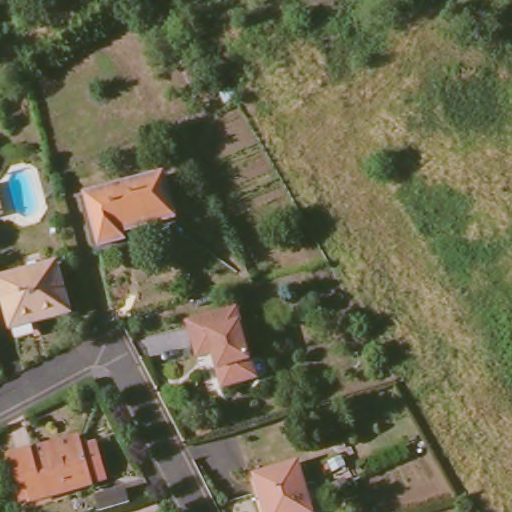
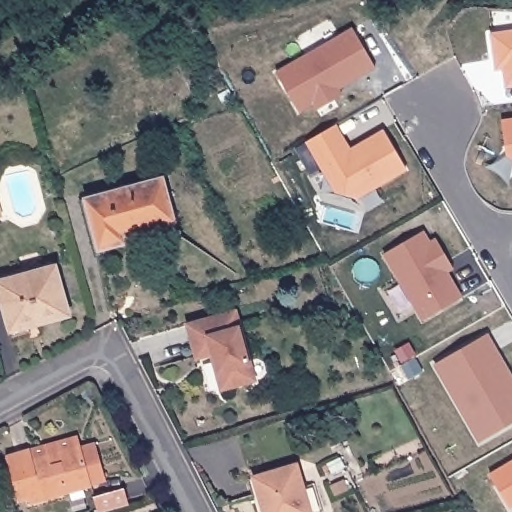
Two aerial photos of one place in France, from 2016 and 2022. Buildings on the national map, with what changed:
new [(314,107),(310,101),(295,109),(273,69),(351,26),(373,65),(335,87),(339,93),(332,97),(314,107)]
new [(503,71),(495,72),(490,34),(512,30),(512,87),(505,88),(503,71)]
new [(500,118),(512,116),(512,158),(504,152),(500,118)]
new [(304,139),(332,123),(349,152),(355,147),(354,145),(382,129),(403,166),(353,196),(334,191),(304,139)]
unchanged [(158,176),(170,217),(127,231),(128,239),(100,247),(87,197),(158,176)]
new [(446,259),(440,263),(459,297),(420,320),(381,252),(420,230),(427,242),(433,237),(446,259)]
new [(450,267),(443,271),(440,263),(446,259),(450,267)]
unchanged [(47,265),(58,313),(3,327),(0,312),(0,277),(47,265)]
unchanged [(235,307),(254,375),(223,384),(213,347),(199,352),(190,320),(235,307)]
new [(434,363),(485,332),(496,351),(512,377),(512,423),(498,431),(480,441),(472,428),(434,363)]
unchanged [(105,484),(18,503),(0,459),(0,452),(25,443),(31,455),(93,435),(105,484)]
unchanged [(313,509),(306,512),(266,512),(252,479),(294,461),(313,509)]
new [(491,474),(512,461),(512,506),(511,507),(491,474)]
unchanged [(126,487),(130,503),(102,511),(97,495),(126,487)]

